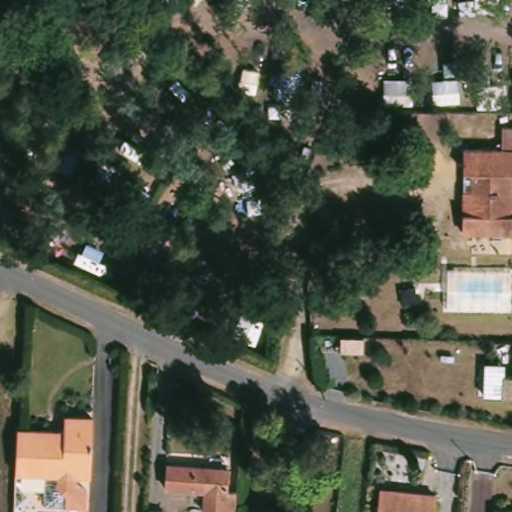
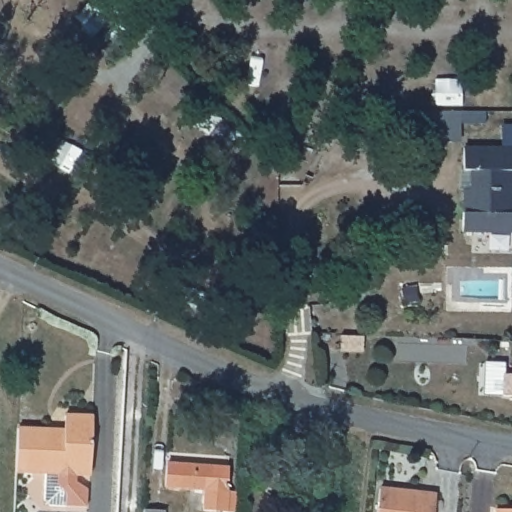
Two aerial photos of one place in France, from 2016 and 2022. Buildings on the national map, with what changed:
unchanged [(497,149),(497,132),(497,127),(512,127),(512,238),(507,238),(507,233),(458,232),(458,213),(459,171),(459,148),(497,149)]
unchanged [(340,351),(340,336),(363,337),(363,352),(340,351)]
unchanged [(503,370),(512,371),(512,392),(502,391),(503,370)]
unchanged [(45,500),(46,473),(16,472),(18,443),(18,429),(52,430),(59,430),(64,431),(65,415),(93,417),(90,475),(76,475),(76,482),(88,489),(88,507),(66,506),(50,506),(45,500)]
unchanged [(211,489),(170,486),(172,464),(234,468),(232,491),(242,492),(240,512),(231,512),(209,510),(211,489)]
unchanged [(431,495),(429,512),(372,512),(375,490),(431,495)]
unchanged [(169,511),(168,512),(149,512),(149,510),(169,511)]
unchanged [(512,511),(512,512),(489,512),(489,510),(512,511)]

